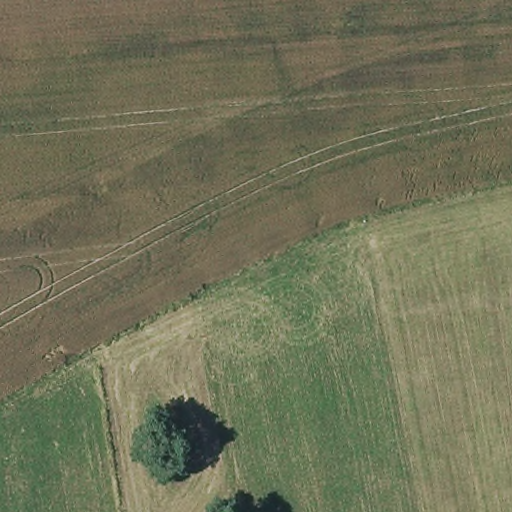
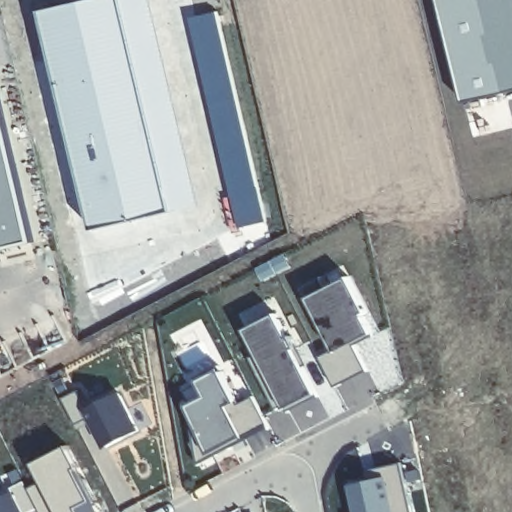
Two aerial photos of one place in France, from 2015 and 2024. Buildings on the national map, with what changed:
new [(155,0),(202,205),(93,228),(81,183),(40,8),(77,0),(155,0)]
new [(458,97),(436,0),(512,0),(512,86),(458,97)]
new [(216,9),(233,76),(266,221),(237,227),(189,16),(216,9)]
new [(0,251),(0,86),(33,243),(0,251)]
new [(350,275),(379,333),(357,343),(333,349),(308,297),(350,275)]
new [(277,312),(308,371),(319,395),(285,413),(265,379),(245,329),(277,312)]
new [(333,349),(357,343),(377,386),(372,390),(365,375),(335,389),(320,356),(333,349)]
new [(206,395),(198,379),(221,367),(240,401),(253,394),(268,422),(211,454),(188,405),(206,395)]
new [(80,388),(89,405),(120,390),(142,428),(105,449),(87,416),(77,422),(63,397),(80,388)]
new [(42,480),(34,462),(69,444),(104,512),(58,512),(57,511),(56,512),(41,512),(39,509),(28,487),(42,480)]
new [(402,461),(405,471),(419,468),(423,487),(410,490),(414,512),(396,512),(386,473),(366,477),(364,469),(402,461)]
new [(33,512),(0,512),(0,477),(18,468),(23,478),(28,487),(39,509),(33,512)]
new [(366,477),(386,473),(396,512),(352,512),(348,482),(366,477)]

